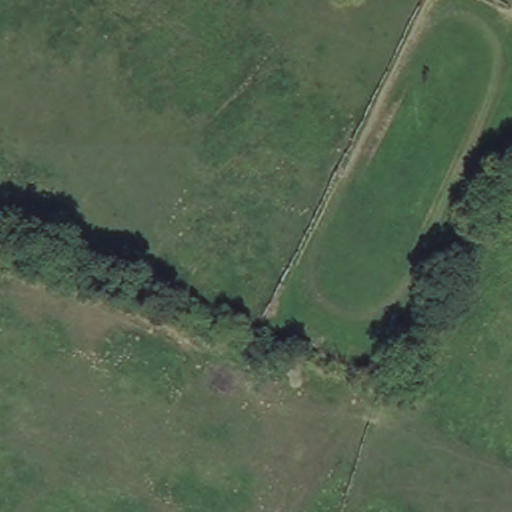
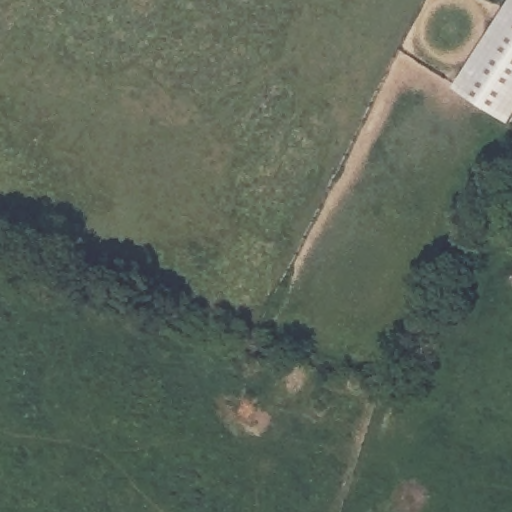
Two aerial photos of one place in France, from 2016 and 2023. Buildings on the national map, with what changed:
new [(512,120),(458,79),(511,0),(512,0),(512,120)]

